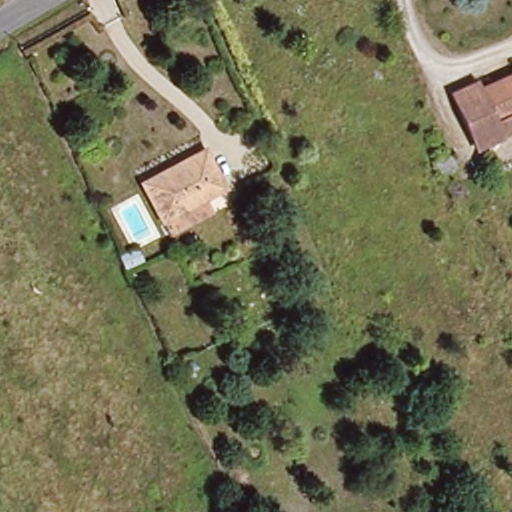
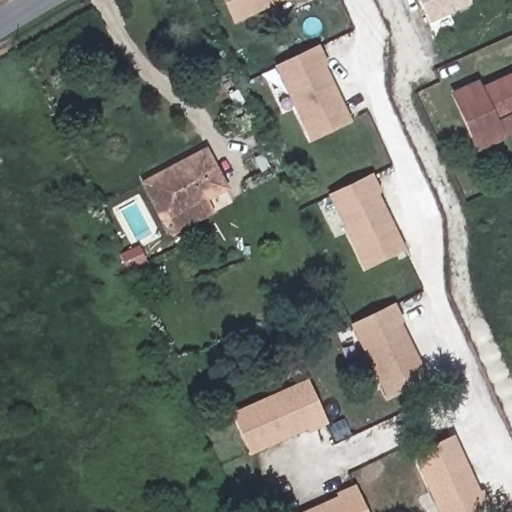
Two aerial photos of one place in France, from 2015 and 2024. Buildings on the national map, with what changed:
new [(225,0),(285,0),(235,22),(225,0)]
new [(418,0),(470,0),(471,4),(428,24),(418,0)]
new [(318,50),(325,65),(322,66),(349,122),(312,141),(277,70),(318,50)]
unchanged [(452,94),(478,82),(482,90),(512,76),(512,134),(504,137),(478,150),(452,94)]
unchanged [(171,235),(164,221),(163,222),(143,184),(206,150),(226,187),(206,199),(213,212),(171,235)]
new [(371,176),(379,192),(376,193),(404,248),(368,267),(332,196),(371,176)]
unchanged [(138,249),(144,261),(127,268),(121,257),(138,249)]
new [(395,307),(402,322),(399,324),(427,379),(390,397),(355,327),(395,307)]
new [(310,383),(328,424),(312,431),(311,428),(255,452),(235,413),(310,383)]
new [(456,437),(483,493),(485,492),(492,507),(483,512),(445,512),(418,456),(456,437)]
new [(344,496),(343,493),(359,487),(370,512),(308,512),(344,496)]

